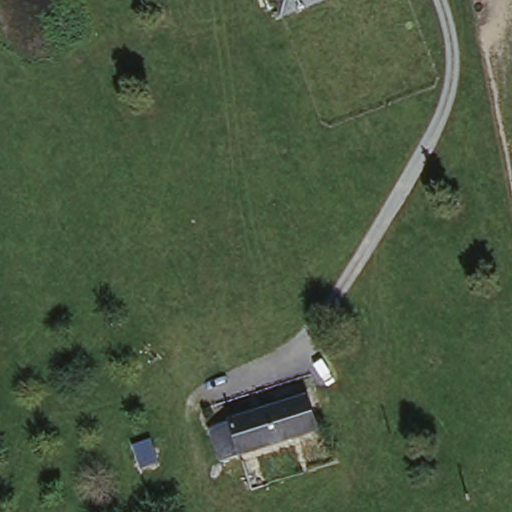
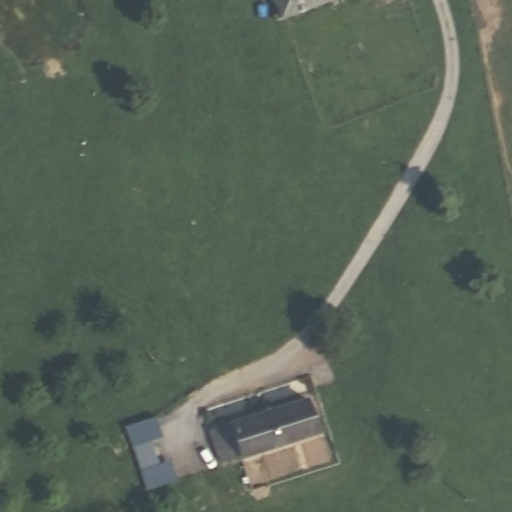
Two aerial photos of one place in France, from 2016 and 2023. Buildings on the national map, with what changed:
unchanged [(312,6),(282,19),(274,0),(310,0),(312,6)]
unchanged [(312,6),(310,0),(329,0),(312,6)]
unchanged [(310,396),(321,430),(225,461),(213,427),(310,396)]
new [(156,417),(161,436),(152,439),(160,463),(170,460),(176,480),(147,490),(125,427),(156,417)]

